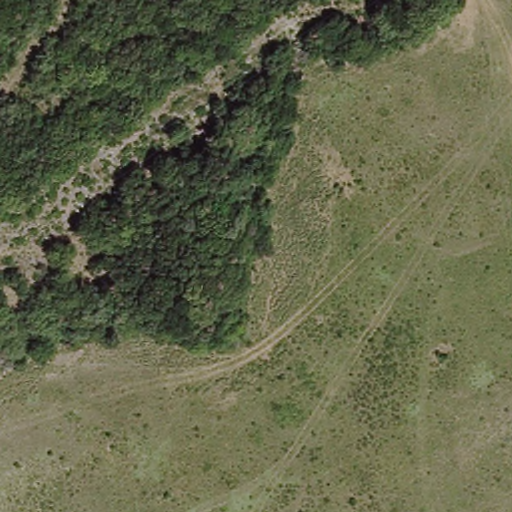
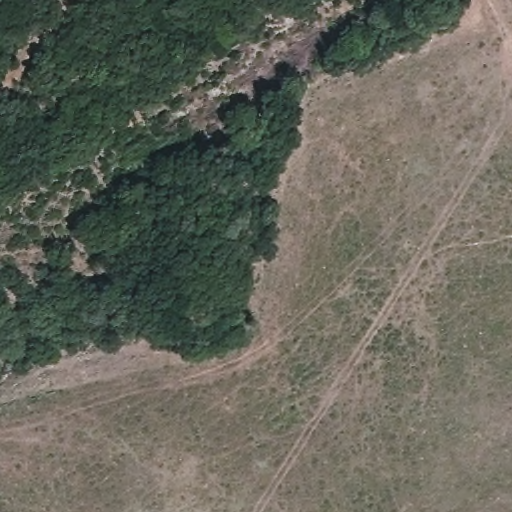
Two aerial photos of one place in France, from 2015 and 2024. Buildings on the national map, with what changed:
[]

